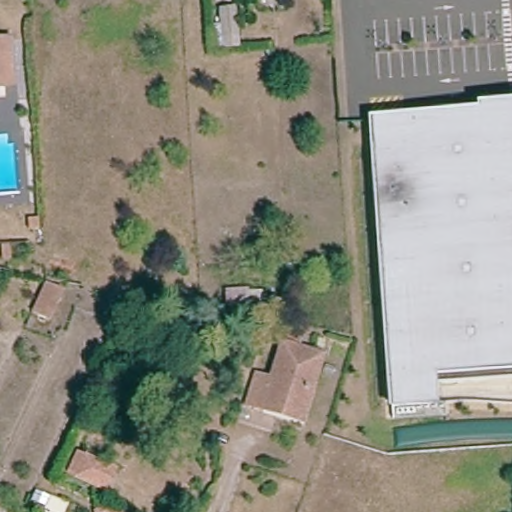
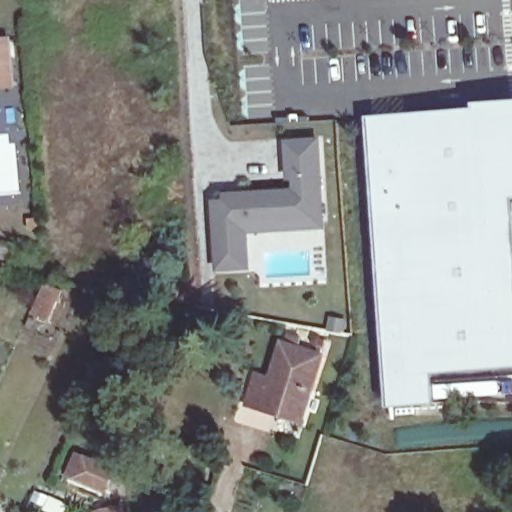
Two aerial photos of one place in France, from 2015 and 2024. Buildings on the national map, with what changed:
demolished [(237,11),(238,36),(223,37),(221,12),(237,11)]
unchanged [(5,90),(0,90),(0,91),(0,46),(2,45),(6,45),(7,62),(10,89),(8,90),(5,90)]
unchanged [(512,190),(505,105),(512,104),(512,190)]
unchanged [(478,107),(505,105),(512,190),(512,369),(432,375),(435,406),(392,410),(370,120),(479,112),(478,107)]
new [(286,187),(281,139),(320,136),(326,230),(250,235),(250,270),(212,272),(210,192),(286,187)]
new [(45,286),(61,294),(49,321),(33,314),(45,286)]
unchanged [(247,407),(256,377),(271,381),(282,345),(284,346),(322,357),(311,393),(301,424),(263,412),(247,407)]
unchanged [(64,470),(73,451),(112,470),(104,488),(64,470)]

